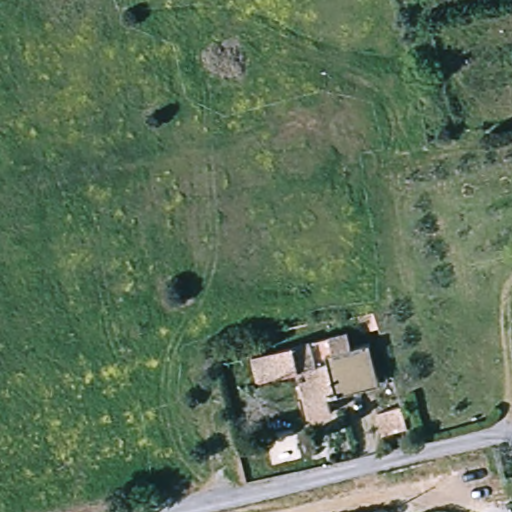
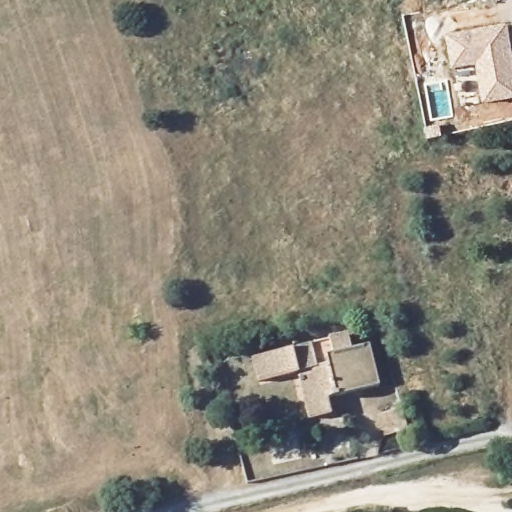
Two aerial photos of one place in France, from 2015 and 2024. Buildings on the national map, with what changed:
new [(509,27),(512,44),(512,100),(464,109),(451,39),(509,27)]
unchanged [(325,357),(326,365),(355,360),(363,389),(329,396),(333,413),(308,420),(304,402),(314,400),(305,369),(257,380),(252,356),(339,337),(342,354),(325,357)]

